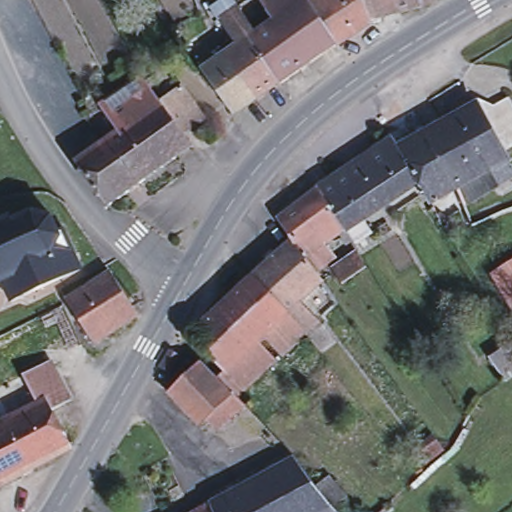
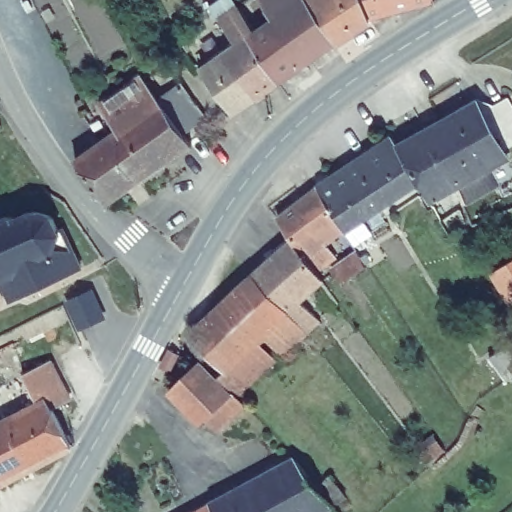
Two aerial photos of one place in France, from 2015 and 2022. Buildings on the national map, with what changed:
unchanged [(399,10),(370,18),(371,21),(350,35),(336,44),(306,64),(275,19),(261,0),(396,0),(399,10)]
unchanged [(434,2),(399,10),(396,0),(433,0),(434,2)]
unchanged [(202,70),(236,46),(220,19),(240,6),(256,32),(275,19),(306,64),(279,83),(255,100),(235,115),(231,110),(202,70)]
unchanged [(147,76),(165,101),(148,113),(122,131),(105,106),(146,77),(147,76)]
unchanged [(186,86),(210,119),(189,134),(165,101),(186,86)]
unchanged [(505,100),(512,112),(512,144),(498,152),(477,114),(505,100)]
unchanged [(165,101),(189,134),(196,145),(180,157),(148,113),(165,101)]
unchanged [(472,104),(477,114),(498,152),(503,161),(485,171),(495,187),(460,206),(452,187),(453,187),(422,132),(472,104)]
unchanged [(108,141),(122,131),(148,113),(180,157),(140,187),(106,143),(108,141)]
unchanged [(422,132),(453,187),(452,187),(425,203),(414,181),(395,147),(422,132)]
unchanged [(106,143),(140,187),(112,206),(80,161),(106,143)]
unchanged [(395,145),(395,147),(414,181),(380,203),(378,201),(358,169),(395,145)]
unchanged [(278,356),(261,338),(255,344),(272,362),(233,398),(214,378),(220,372),(186,335),(213,310),(250,276),(265,263),(290,241),(273,220),(313,190),(327,179),(352,160),(358,169),(378,201),(353,216),(337,226),(347,240),(342,244),(332,230),(319,239),(330,257),(318,266),(326,277),(318,280),(296,301),(316,320),(303,333),(278,356)]
unchanged [(25,272),(0,284),(0,220),(10,215),(11,219),(35,210),(51,215),(59,229),(63,227),(76,253),(56,262),(63,277),(34,291),(25,272)]
unchanged [(495,274),(512,263),(512,303),(495,274)]
demolished [(138,318),(93,343),(68,306),(65,301),(111,275),(138,318)]
new [(107,320),(77,334),(65,304),(93,290),(107,320)]
unchanged [(512,356),(512,362),(500,370),(490,358),(506,348),(512,356)]
unchanged [(25,376),(52,363),(71,402),(53,410),(48,401),(40,406),(25,376)]
unchanged [(213,433),(201,421),(197,425),(166,392),(195,363),(226,395),(239,410),(213,433)]
unchanged [(40,406),(48,401),(53,410),(60,425),(71,449),(25,472),(1,424),(40,406)]
unchanged [(25,472),(0,485),(0,425),(1,424),(25,472)]
unchanged [(334,507),(327,512),(254,512),(242,489),(297,461),(334,507)]
unchanged [(254,512),(216,512),(212,505),(242,489),(254,512)]
unchanged [(216,512),(200,512),(212,505),(216,512)]

